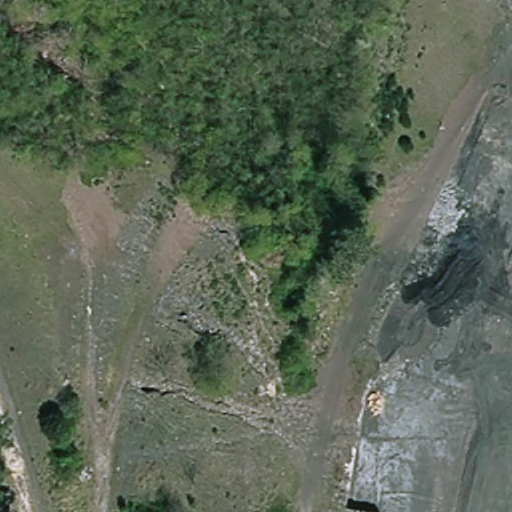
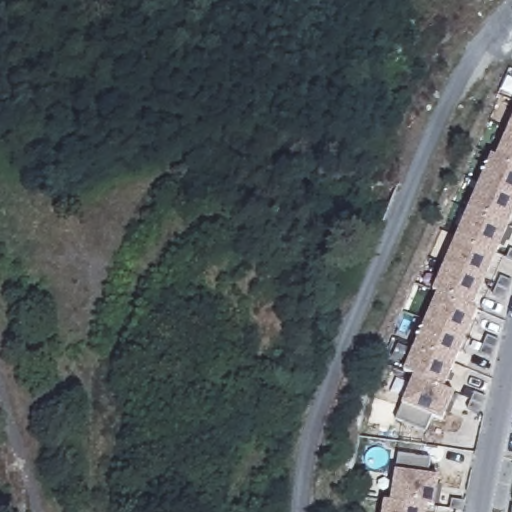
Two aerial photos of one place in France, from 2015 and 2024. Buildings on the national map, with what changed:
new [(442,420),(432,416),(425,430),(396,417),(402,403),(414,373),(405,369),(437,291),(434,289),(492,152),(497,154),(512,120),(512,217),(472,306),(478,309),(445,385),(455,390),(442,420)]
new [(400,452),(431,457),(429,473),(441,474),(437,507),(429,506),(428,512),(382,512),(384,498),(392,499),(397,467),(400,452)]

